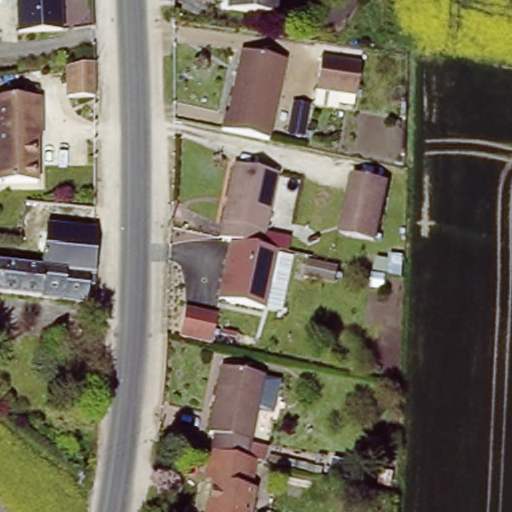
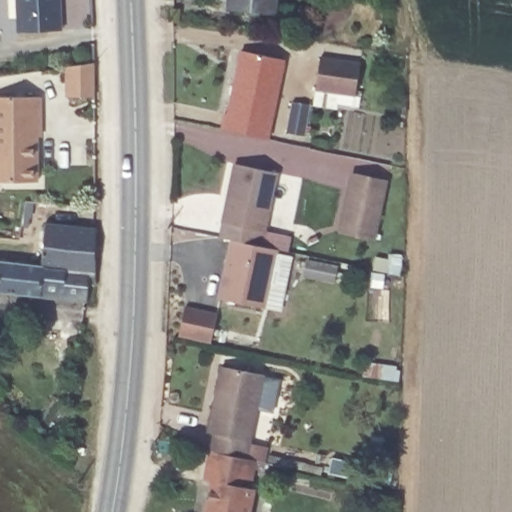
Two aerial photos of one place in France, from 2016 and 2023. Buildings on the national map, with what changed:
unchanged [(21,37),(20,0),(63,0),(65,35),(21,37)]
unchanged [(230,10),(231,0),(277,0),(275,15),(230,10)]
unchanged [(226,113),(232,114),(245,49),(288,57),(272,138),(223,129),(226,113)]
unchanged [(95,95),(65,94),(66,67),(95,63),(95,95)]
unchanged [(373,70),(368,100),(330,95),(335,64),(373,70)]
unchanged [(46,95),(45,121),(39,121),(37,180),(0,179),(0,94),(46,95)]
unchanged [(237,223),(225,220),(236,165),(276,174),(265,229),(237,223)]
unchanged [(385,183),(375,234),(342,228),(352,177),(385,183)]
unchanged [(48,261),(53,220),(101,225),(94,295),(0,285),(0,256),(48,261)]
unchanged [(265,229),(278,232),(262,302),(221,293),(237,223),(265,229)]
unchanged [(180,336),(186,307),(217,314),(211,341),(180,336)]
unchanged [(270,377),(257,442),(216,434),(230,370),(270,377)]
unchanged [(255,490),(260,490),(256,512),(213,512),(218,484),(209,482),(215,453),(261,463),(255,490)]

